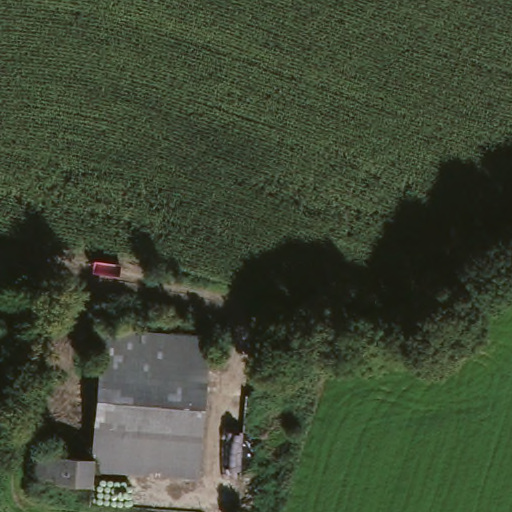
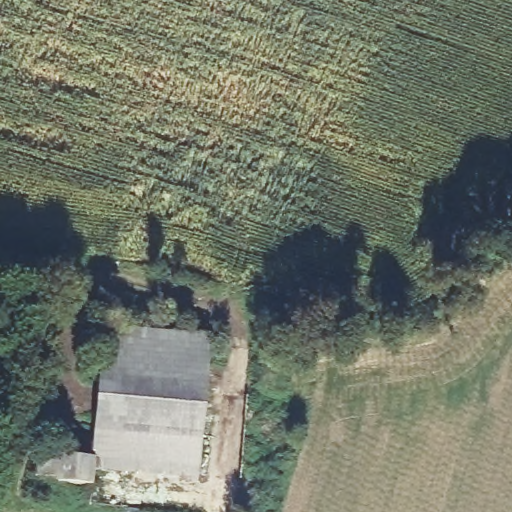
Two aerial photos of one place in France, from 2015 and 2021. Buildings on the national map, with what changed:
unchanged [(112,329),(216,339),(214,363),(109,353),(112,329)]
unchanged [(107,368),(109,353),(214,363),(202,470),(97,461),(98,449),(107,368)]
unchanged [(98,449),(97,461),(96,476),(64,474),(63,468),(41,466),(44,444),(98,449)]

